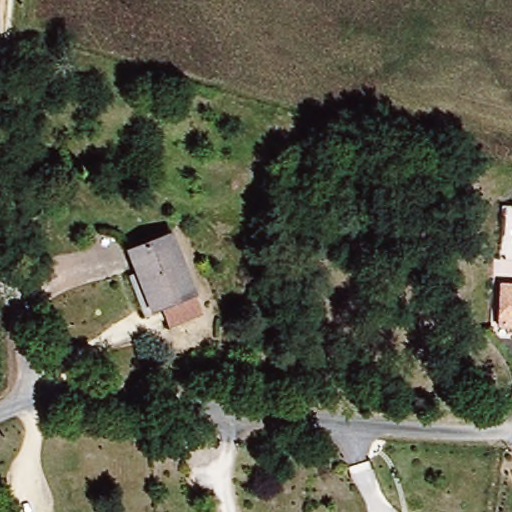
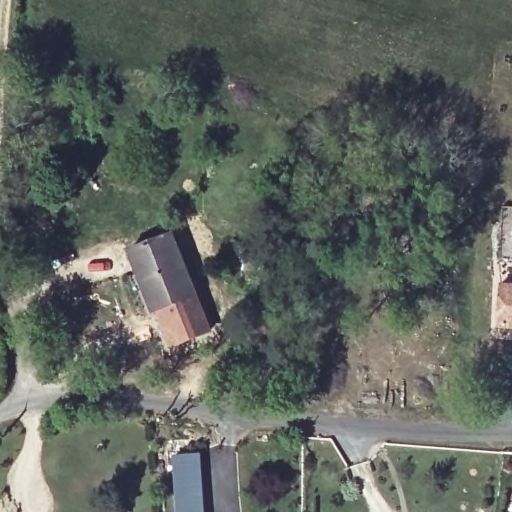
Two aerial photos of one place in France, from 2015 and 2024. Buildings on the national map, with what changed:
unchanged [(170,328),(164,309),(139,317),(125,275),(134,272),(128,252),(176,236),(195,299),(201,318),(170,328)]
unchanged [(495,330),(498,284),(512,284),(512,331),(495,330)]
new [(195,458),(201,512),(175,512),(170,460),(195,458)]

